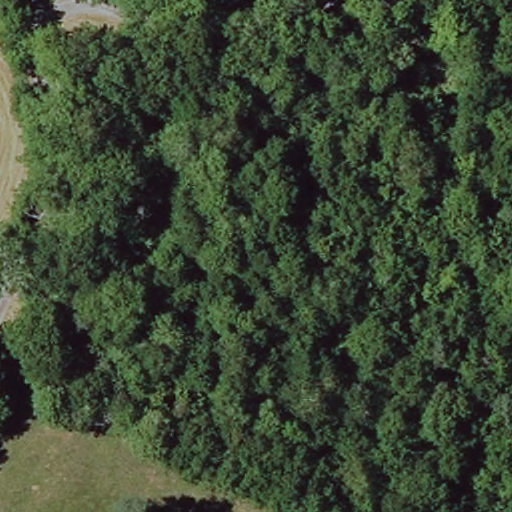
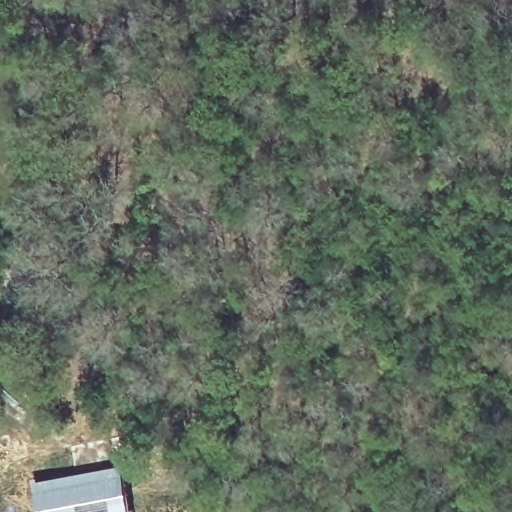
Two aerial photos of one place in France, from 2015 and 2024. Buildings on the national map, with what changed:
new [(123,466),(132,512),(37,512),(31,483),(123,466)]

